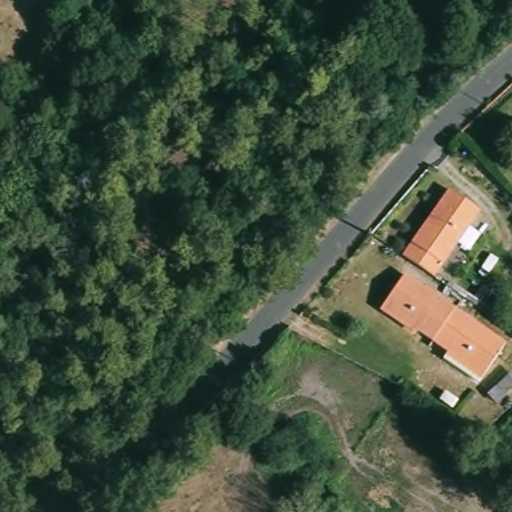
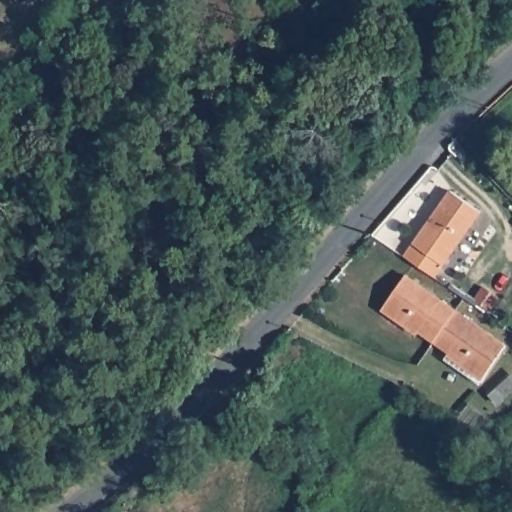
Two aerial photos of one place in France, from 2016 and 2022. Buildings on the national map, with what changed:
unchanged [(451,195),(481,216),(451,257),(435,281),(410,263),(405,260),(451,195)]
unchanged [(410,278),(510,348),(483,389),(446,364),(454,353),(390,308),(410,278)]
unchanged [(512,381),(512,396),(508,400),(501,392),(512,381)]

